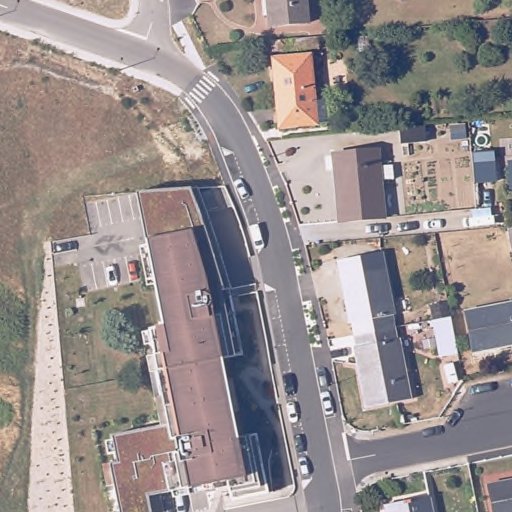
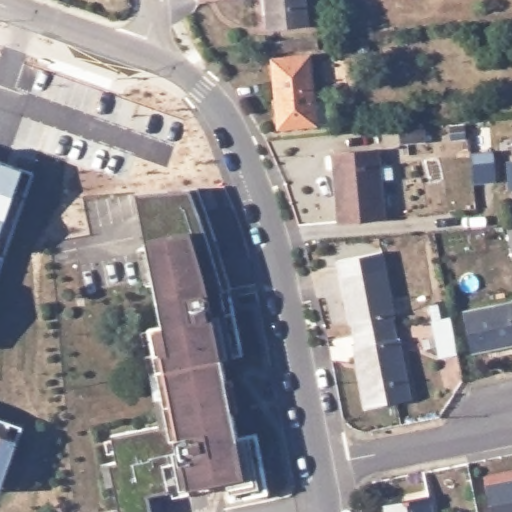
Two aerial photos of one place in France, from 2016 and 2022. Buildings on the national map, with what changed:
unchanged [(308,23),(269,28),(267,0),(306,0),(308,23)]
unchanged [(308,56),(312,101),(324,100),(326,123),(278,127),(272,59),(308,56)]
unchanged [(426,128),(427,141),(403,144),(402,131),(426,128)]
unchanged [(333,188),(330,155),(375,151),(376,167),(389,166),(390,179),(377,180),(381,219),(341,222),(336,222),(333,188)]
new [(494,156),(497,187),(476,189),(473,158),(494,156)]
new [(34,174),(0,268),(0,162),(34,174)]
unchanged [(510,164),(512,163),(512,195),(510,164)]
unchanged [(120,465),(114,437),(175,425),(137,242),(147,241),(140,193),(197,190),(211,230),(219,255),(227,281),(232,303),(242,354),(223,357),(240,440),(258,439),(270,495),(232,502),(229,482),(190,490),(181,491),(149,497),(152,512),(120,512),(110,467),(120,465)]
unchanged [(512,228),(512,248),(508,230),(512,228)]
unchanged [(354,324),(351,325),(340,261),(384,253),(396,317),(393,317),(395,330),(356,338),(354,324)]
unchanged [(512,344),(472,353),(465,311),(512,301),(512,344)]
unchanged [(439,357),(432,323),(430,310),(447,306),(450,320),(457,354),(439,357)]
unchanged [(395,330),(397,343),(400,343),(410,401),(365,409),(355,350),(358,350),(356,338),(395,330)]
new [(22,427),(0,488),(0,419),(22,427)]
unchanged [(512,512),(492,512),(487,487),(512,482),(512,512)]
unchanged [(427,498),(430,512),(386,512),(385,506),(427,498)]

